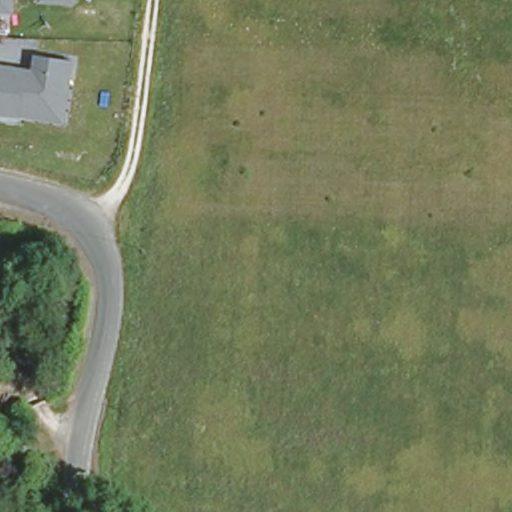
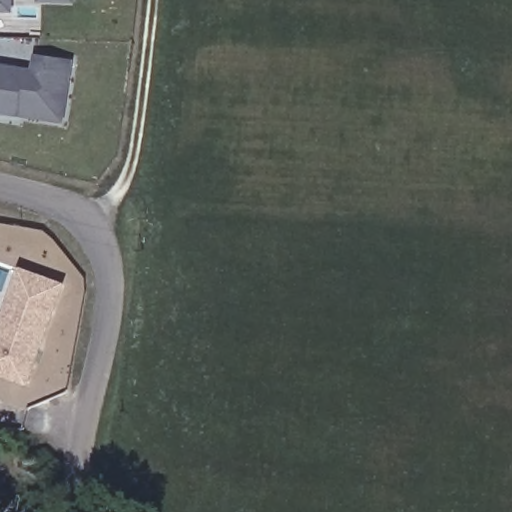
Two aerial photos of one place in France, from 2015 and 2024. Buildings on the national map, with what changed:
unchanged [(0,12),(0,0),(15,0),(15,11),(0,12)]
unchanged [(39,5),(39,0),(77,0),(77,4),(39,5)]
unchanged [(0,115),(0,64),(32,68),(35,54),(76,59),(66,125),(0,115)]
new [(0,325),(21,265),(69,282),(31,385),(25,383),(0,375),(0,325)]

